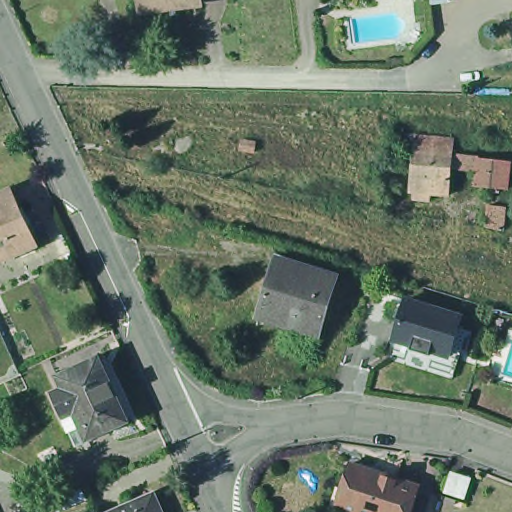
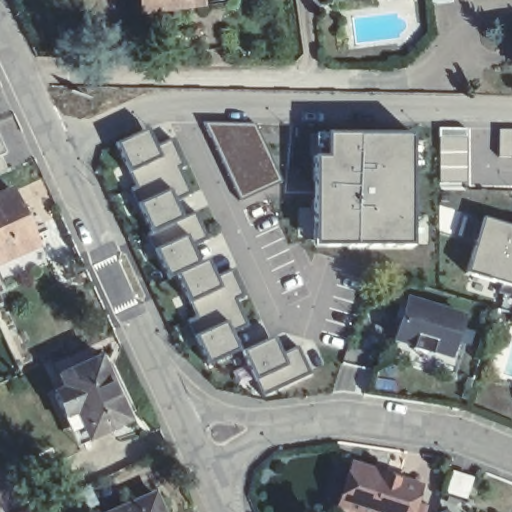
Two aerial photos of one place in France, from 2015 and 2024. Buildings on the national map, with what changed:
unchanged [(180,2),(180,9),(144,14),(142,0),(201,0),(180,2)]
new [(280,182),(242,201),(203,124),(254,126),(280,182)]
new [(469,128),(470,183),(440,183),(440,128),(469,128)]
new [(157,145),(173,138),(185,164),(180,167),(192,192),(175,199),(183,217),(197,211),(207,238),(191,244),(198,263),(210,258),(217,277),(232,271),(243,295),(235,299),(247,324),(232,331),(240,349),(207,364),(187,321),(197,318),(178,274),(170,277),(137,205),(144,202),(117,143),(147,129),(157,145)]
new [(512,130),(512,158),(500,158),(500,130),(512,130)]
new [(414,132),(414,244),(315,244),(317,156),(330,156),(330,132),(414,132)]
demolished [(416,190),(410,190),(415,151),(415,148),(417,135),(455,139),(453,152),(453,156),(450,193),(430,191),(430,199),(415,198),(416,190)]
new [(0,155),(7,173),(0,176),(0,143),(5,154),(0,155)]
demolished [(477,182),(478,168),(456,166),(457,153),(510,158),(512,159),(512,170),(510,170),(507,186),(477,182)]
unchanged [(38,246),(0,263),(0,197),(14,191),(38,246)]
demolished [(487,230),(488,207),(506,209),(504,234),(487,230)]
new [(512,226),(512,295),(512,297),(500,294),(503,282),(468,271),(485,218),(512,226)]
demolished [(261,322),(259,321),(265,298),(272,279),(279,281),(285,262),(277,260),(279,254),(281,254),(280,259),(337,278),(320,335),(317,334),(320,323),(301,317),(297,328),(267,318),(262,317),(261,322)]
unchanged [(407,297),(465,315),(449,359),(392,340),(407,297)]
new [(275,336),(282,354),(298,347),(310,374),(263,397),(244,352),(275,336)]
unchanged [(60,391),(70,386),(65,373),(106,354),(135,418),(97,435),(90,439),(77,410),(70,413),(60,391)]
unchanged [(75,493),(63,467),(77,462),(87,486),(75,493)]
unchanged [(348,493),(356,469),(392,482),(391,485),(425,497),(419,512),(348,512),(353,496),(348,493)]
unchanged [(465,499),(448,493),(455,473),(472,480),(465,499)]
unchanged [(157,512),(116,512),(150,495),(157,512)]

